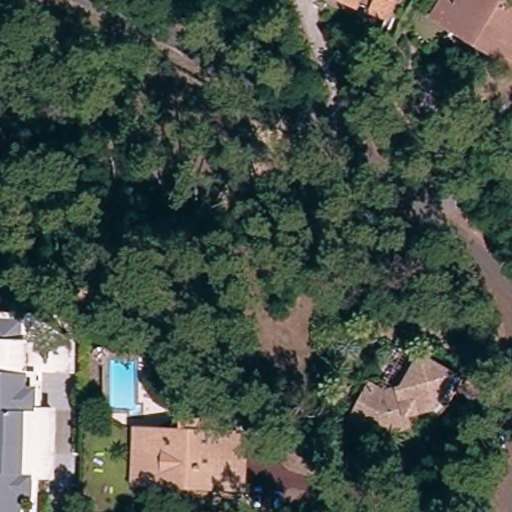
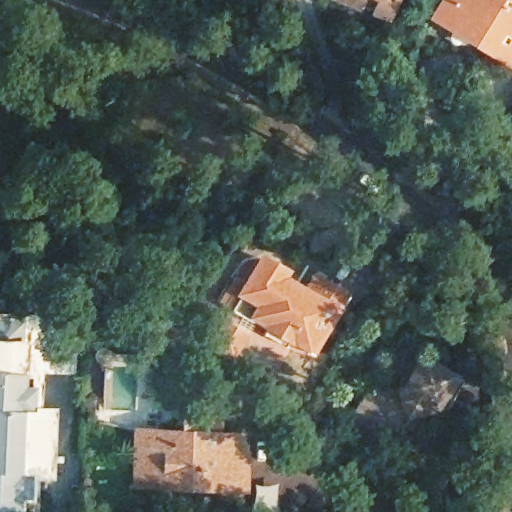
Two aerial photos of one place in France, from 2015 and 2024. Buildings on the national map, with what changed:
unchanged [(354,12),(327,1),(327,0),(392,0),(383,22),(355,10),(354,12)]
unchanged [(512,0),(512,75),(425,19),(438,0),(512,0)]
new [(260,249),(291,267),(288,273),(345,301),(314,356),(247,316),(253,304),(234,293),(260,249)]
unchanged [(0,324),(30,325),(27,388),(37,388),(36,415),(53,415),(51,457),(27,456),(26,475),(34,475),(33,501),(23,500),(22,512),(0,512),(0,324)]
unchanged [(432,423),(423,426),(419,415),(398,422),(401,433),(369,442),(342,427),(360,395),(373,401),(394,395),(411,363),(444,381),(453,385),(432,423)]
unchanged [(183,443),(184,431),(219,432),(218,444),(242,445),(239,500),(195,497),(195,491),(169,490),(169,484),(140,483),(141,462),(145,462),(145,442),(183,443)]

